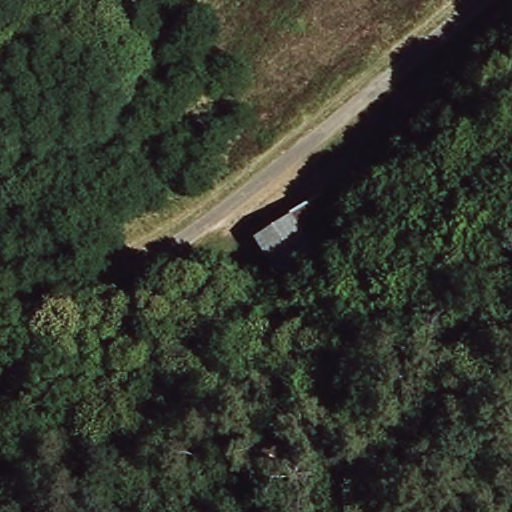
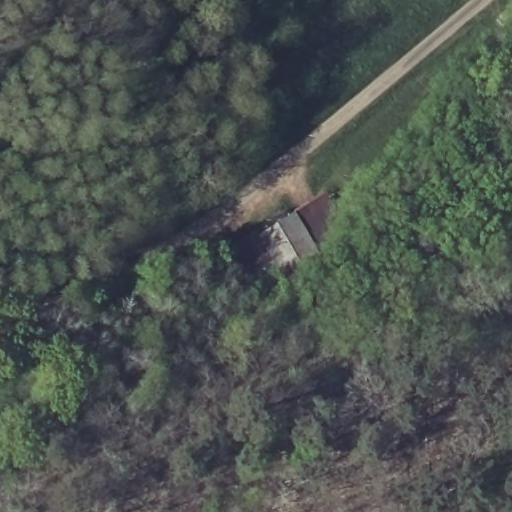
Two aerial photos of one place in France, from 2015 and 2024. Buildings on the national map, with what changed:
unchanged [(317,190),(354,244),(289,295),(250,240),(317,190)]

